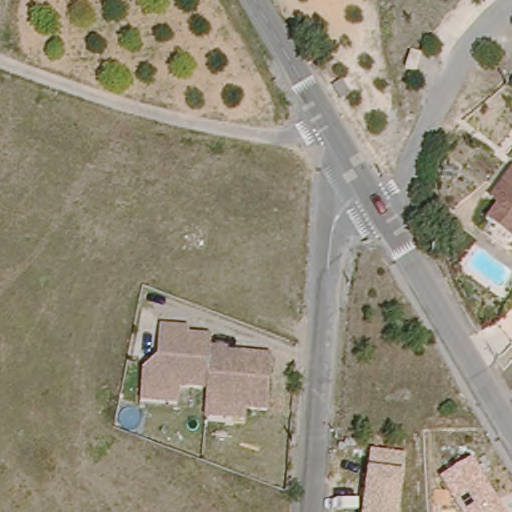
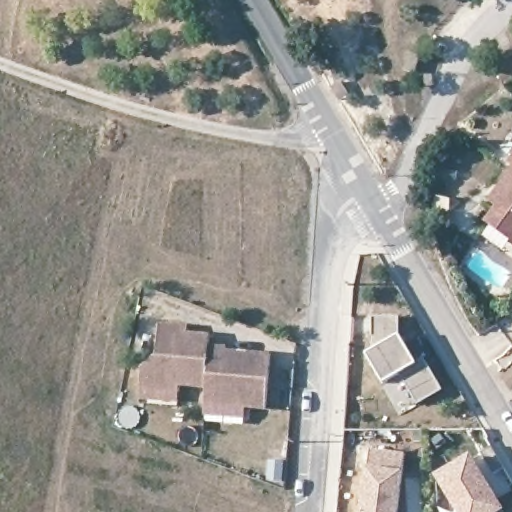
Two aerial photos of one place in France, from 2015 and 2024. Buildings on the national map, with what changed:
unchanged [(512,159),(512,167),(508,164),(512,159)]
unchanged [(512,171),(512,245),(484,224),(496,207),(488,202),(495,194),(512,171)]
new [(388,339),(388,333),(373,333),(373,314),(400,313),(401,331),(419,359),(426,354),(446,386),(421,401),(402,371),(387,381),(369,352),(388,339)]
unchanged [(147,393),(149,384),(152,363),(167,352),(169,341),(171,321),(200,325),(200,331),(221,334),(220,345),(215,387),(188,383),(187,390),(185,399),(147,393)]
unchanged [(210,414),(212,404),(215,387),(220,345),(237,347),(236,352),(248,353),(280,357),(272,412),(252,410),(251,420),(210,414)]
unchanged [(366,467),(370,449),(405,452),(402,472),(398,512),(361,512),(366,467)]
unchanged [(442,478),(472,458),(506,512),(462,512),(442,478)]

